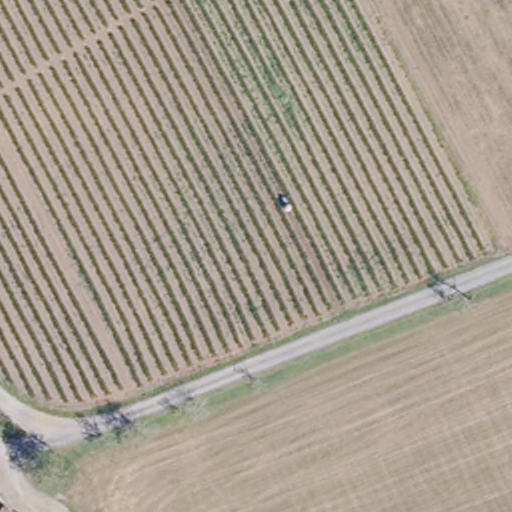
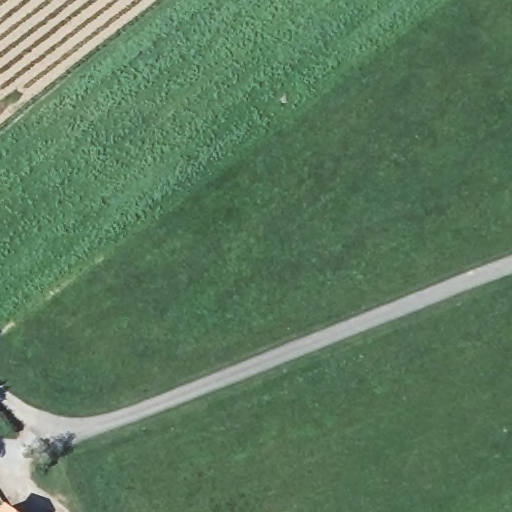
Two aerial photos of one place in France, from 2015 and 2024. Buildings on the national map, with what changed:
unchanged [(3,512),(0,512),(0,510),(3,512)]

